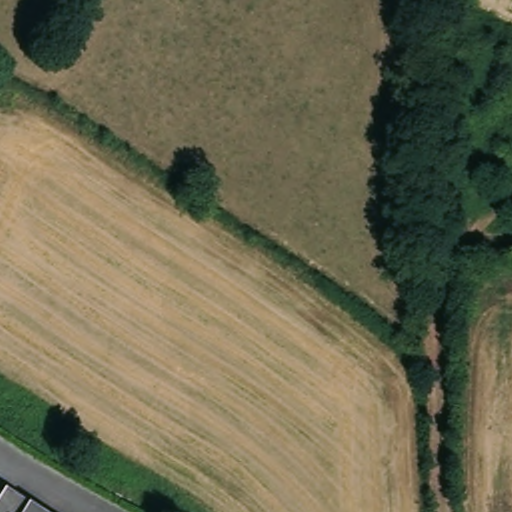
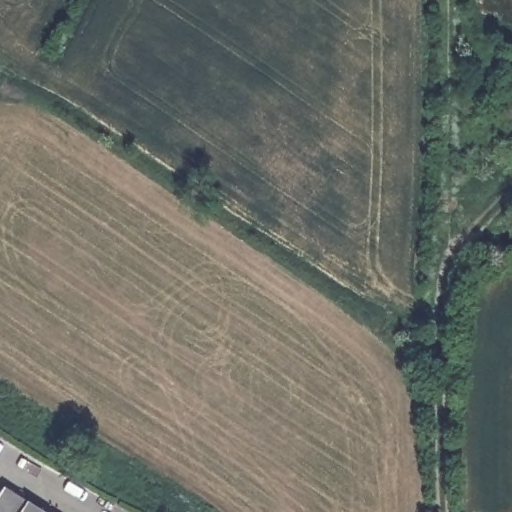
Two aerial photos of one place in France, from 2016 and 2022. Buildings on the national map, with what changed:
unchanged [(41,512),(0,512),(0,510),(11,493),(41,512)]

